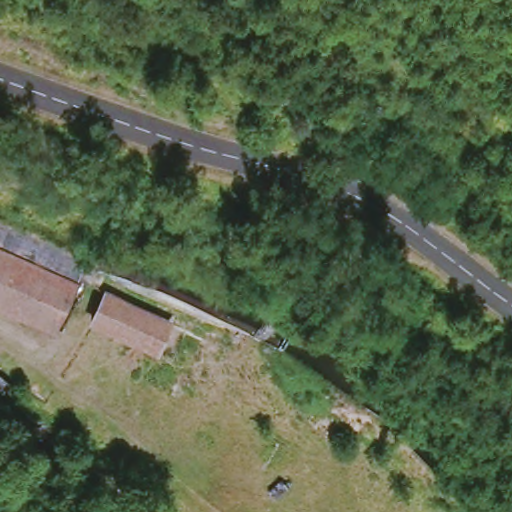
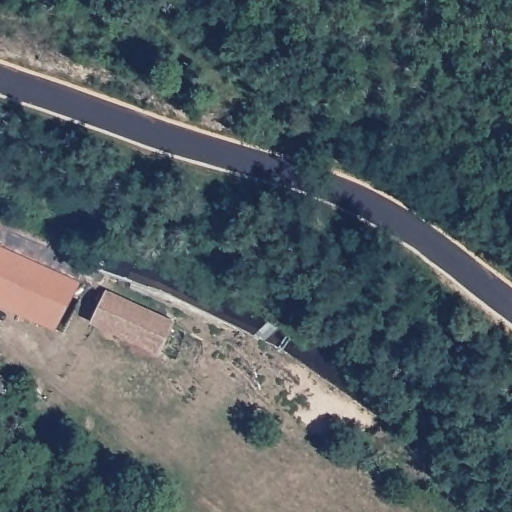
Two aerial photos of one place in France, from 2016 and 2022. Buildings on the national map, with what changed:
unchanged [(0,297),(0,233),(25,244),(0,297)]
unchanged [(0,297),(25,244),(83,271),(55,333),(0,307),(0,297)]
unchanged [(92,326),(106,294),(178,326),(164,357),(92,326)]

